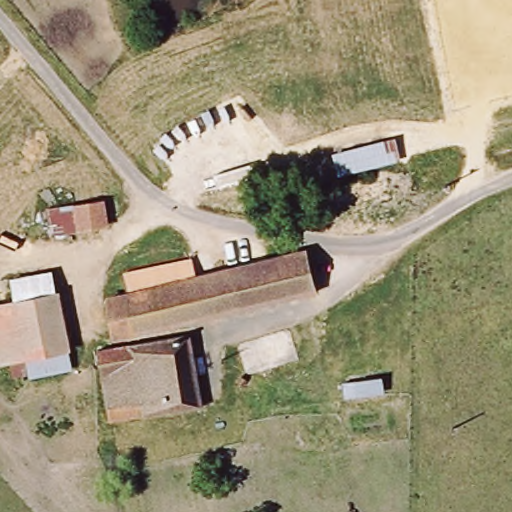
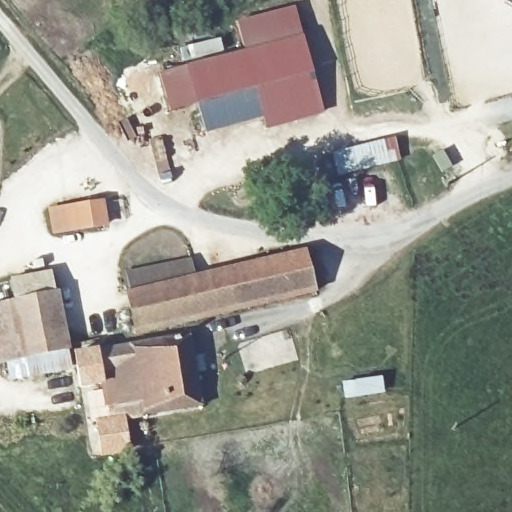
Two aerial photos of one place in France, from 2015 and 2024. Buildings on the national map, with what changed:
new [(255,89),(197,104),(188,66),(247,51),(239,21),(295,6),(325,114),(267,129),(255,89)]
unchanged [(395,139),(400,162),(337,179),(331,156),(395,139)]
unchanged [(104,202),(120,197),(124,217),(107,220),(109,227),(37,240),(32,212),(104,202)]
unchanged [(100,297),(122,292),(120,276),(190,260),(196,277),(302,252),(311,292),(219,313),(131,333),(110,338),(100,297)]
unchanged [(7,278),(51,271),(70,347),(14,361),(0,363),(0,304),(10,301),(7,278)]
unchanged [(199,409),(105,425),(93,351),(185,336),(190,362),(199,361),(200,371),(191,372),(199,409)]
new [(379,378),(382,391),(345,397),(345,383),(379,378)]
unchanged [(377,393),(380,406),(343,412),(342,398),(377,393)]

